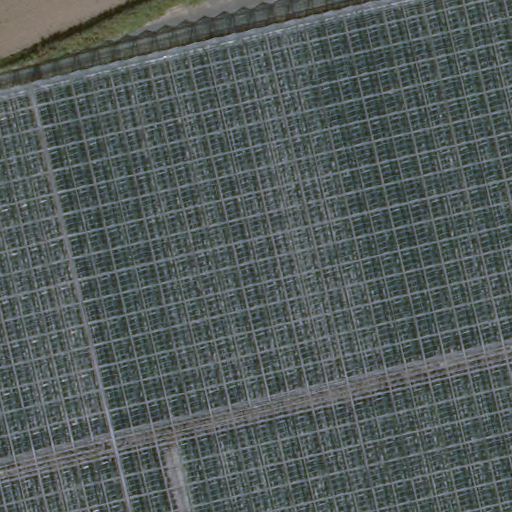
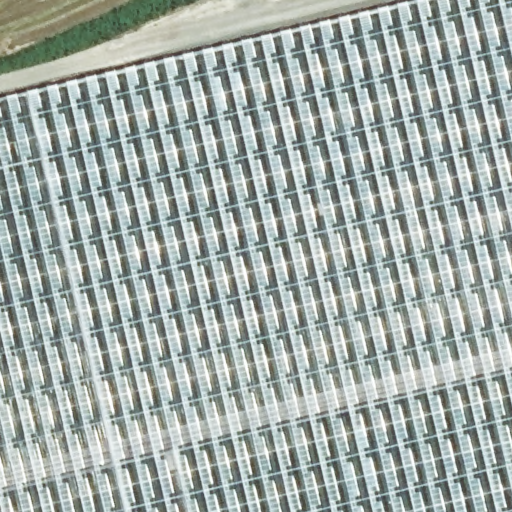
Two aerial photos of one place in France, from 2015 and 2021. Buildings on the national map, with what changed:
unchanged [(75,77),(86,75),(306,22),(333,16),(399,0),(512,0),(512,512),(0,512),(0,96),(50,84),(75,77)]

